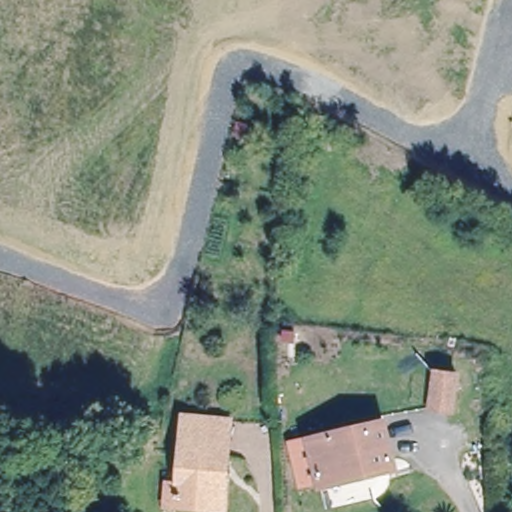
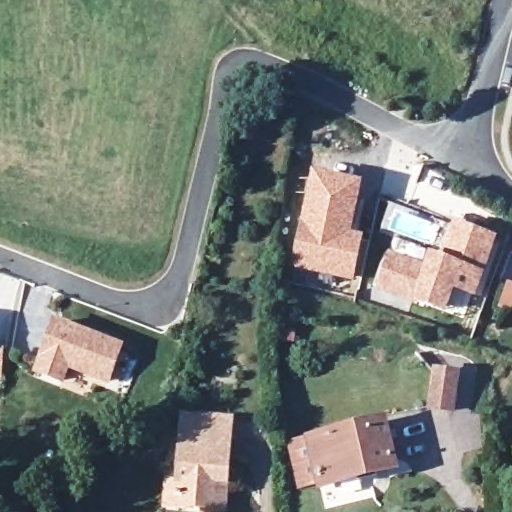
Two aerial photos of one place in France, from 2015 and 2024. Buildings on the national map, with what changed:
new [(349,234),(362,237),(353,275),(298,262),(318,175),(361,184),(349,234)]
new [(389,251),(425,264),(429,252),(440,258),(454,223),(498,238),(478,295),(454,288),(447,314),(375,289),(389,251)]
new [(512,281),(512,311),(500,306),(508,279),(512,281)]
new [(111,382),(71,367),(66,381),(41,371),(59,323),(124,347),(111,382)]
new [(2,381),(0,381),(0,346),(4,346),(2,381)]
unchanged [(281,380),(281,363),(289,363),(290,380),(281,380)]
unchanged [(444,410),(431,408),(437,371),(460,375),(455,412),(444,410)]
unchanged [(176,508),(165,507),(166,484),(178,485),(182,437),(183,418),(230,421),(229,441),(225,488),(223,511),(215,511),(176,508)]
unchanged [(317,484),(305,437),(380,419),(391,465),(317,484)]

